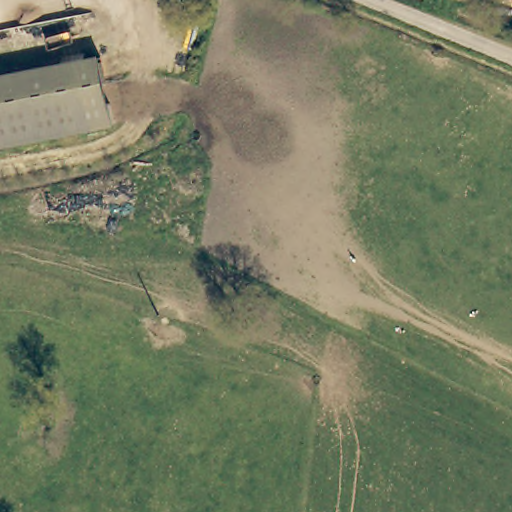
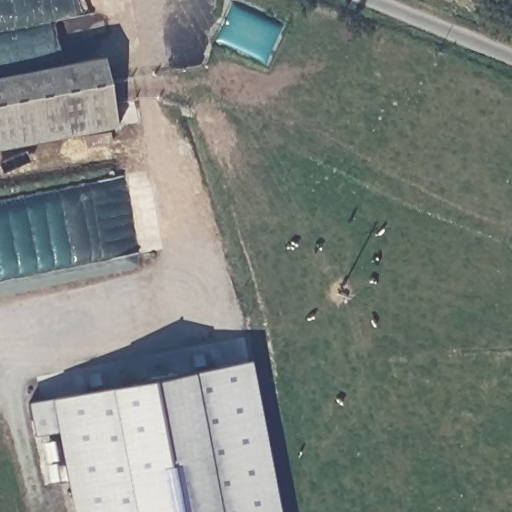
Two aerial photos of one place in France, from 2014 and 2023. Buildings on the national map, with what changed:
unchanged [(0,150),(0,79),(102,60),(113,127),(0,150)]
new [(34,434),(27,401),(248,358),(278,512),(71,512),(56,430),(34,434)]

